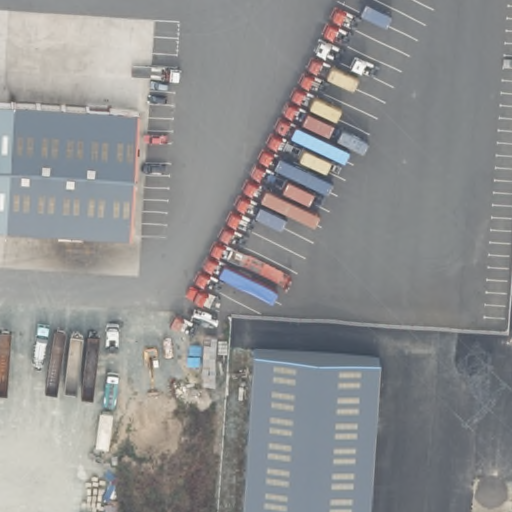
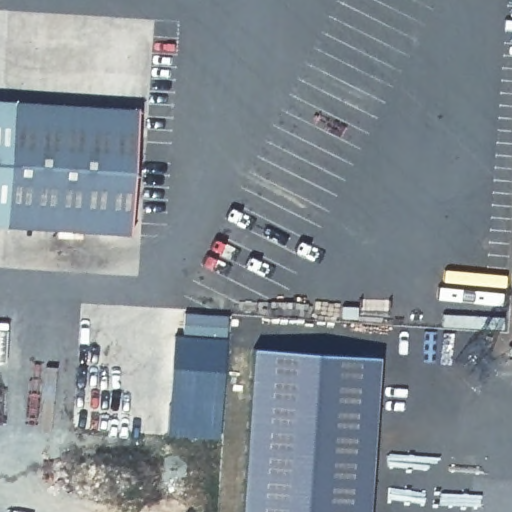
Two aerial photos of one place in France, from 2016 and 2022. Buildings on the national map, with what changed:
unchanged [(0,227),(0,103),(13,104),(4,228),(0,227)]
unchanged [(138,112),(129,237),(4,230),(13,104),(138,112)]
new [(183,335),(185,312),(227,315),(225,337),(219,438),(168,434),(173,334),(183,335)]
unchanged [(369,512),(240,512),(251,346),(378,355),(369,512)]

